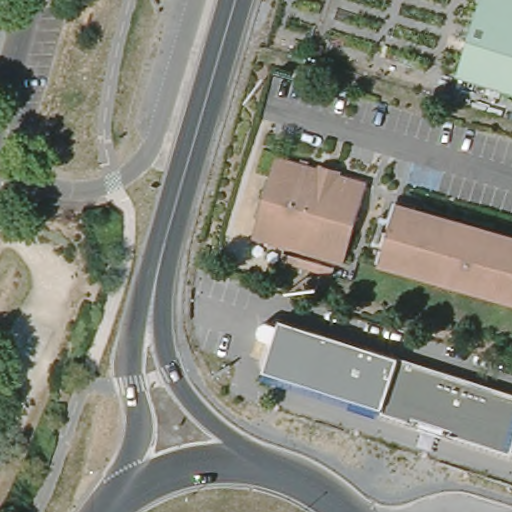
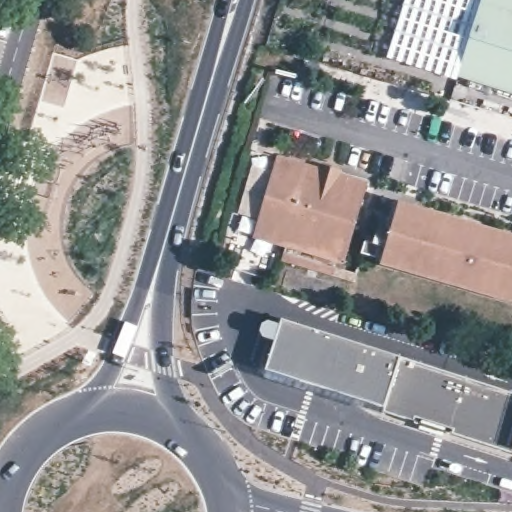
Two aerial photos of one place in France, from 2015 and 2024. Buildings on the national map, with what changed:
new [(480,0),(457,80),(387,59),(405,0),(480,0)]
unchanged [(457,80),(480,0),(512,0),(512,97),(457,80)]
unchanged [(258,214),(277,153),(320,165),(321,161),(340,166),(339,171),(367,179),(344,258),(286,241),(253,232),(258,214)]
unchanged [(512,236),(512,300),(381,260),(376,259),(362,255),(365,243),(380,247),(393,202),(398,203),(417,208),(512,236)]
unchanged [(280,257),(283,249),(335,264),(332,272),(280,257)]
unchanged [(381,412),(260,374),(280,321),(398,357),(381,412)]
unchanged [(512,393),(512,446),(510,453),(449,434),(450,430),(440,427),(439,430),(422,424),(423,422),(413,419),(412,422),(381,412),(398,357),(512,393)]
unchanged [(510,453),(512,446),(512,454),(510,453)]

